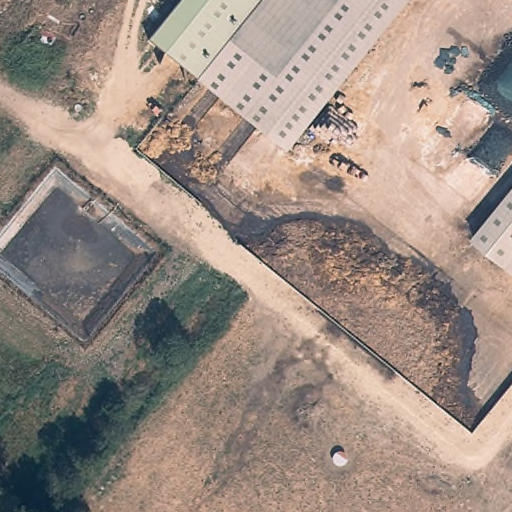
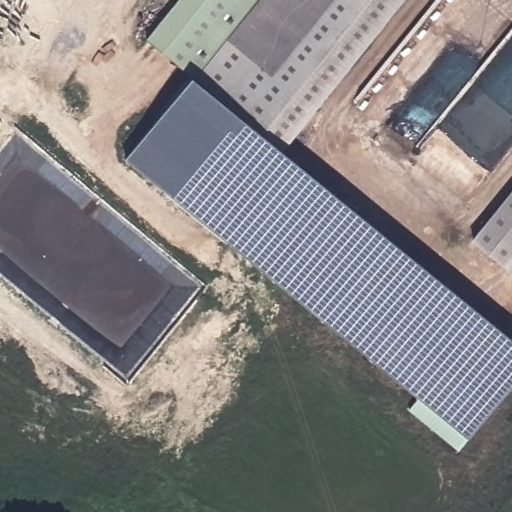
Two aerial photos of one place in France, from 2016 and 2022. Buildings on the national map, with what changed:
unchanged [(179,0),(265,0),(198,81),(147,40),(179,0)]
unchanged [(354,64),(279,156),(193,87),(198,81),(265,0),(406,0),(354,64)]
new [(198,81),(193,87),(279,156),(284,149),(512,336),(512,384),(468,437),(458,450),(408,409),(417,397),(124,159),(192,76),(198,81)]
unchanged [(473,242),(512,194),(512,274),(473,242)]

